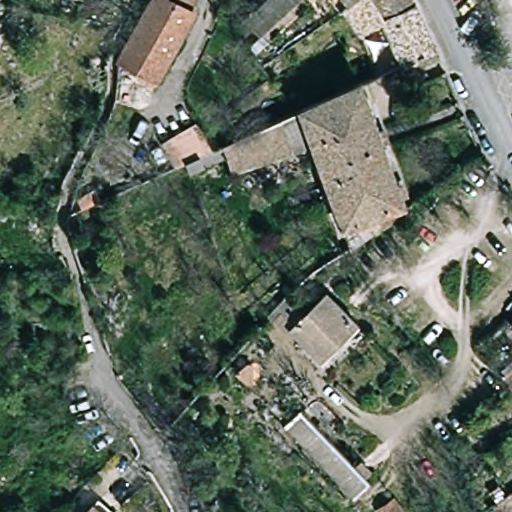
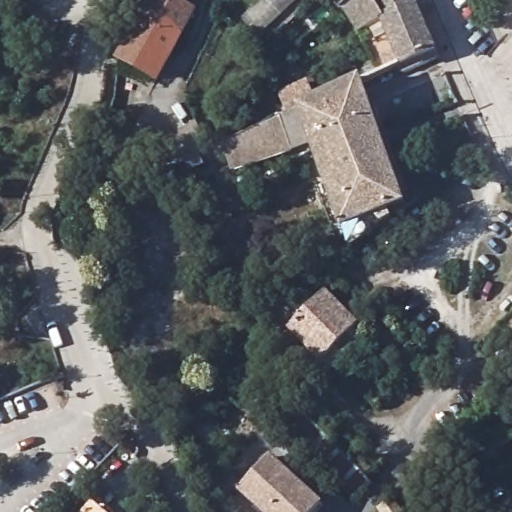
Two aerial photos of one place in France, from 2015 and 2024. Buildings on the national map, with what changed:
unchanged [(188,0),(187,7),(195,12),(158,79),(124,60),(153,0),(188,0)]
unchanged [(307,0),(267,39),(248,22),(269,0),(307,0)]
unchanged [(400,72),(398,68),(382,76),(364,34),(347,7),(353,3),(356,0),(413,0),(416,4),(437,51),(440,58),(406,74),(400,72)]
unchanged [(351,0),(356,0),(353,3),(351,0)]
unchanged [(364,80),(407,204),(353,243),(352,241),(317,145),(293,156),(280,115),(362,78),(364,80)]
unchanged [(187,157),(215,144),(222,141),(242,132),(247,130),(243,124),(248,122),(251,128),(280,115),(293,156),(225,186),(213,157),(190,166),(187,157)]
unchanged [(323,360),(288,325),(290,322),(287,317),(297,308),(305,316),(305,315),(317,305),(327,294),(345,312),(358,324),(341,342),(323,360)]
unchanged [(293,432),(297,427),(286,416),(297,405),(368,477),(353,492),(293,432)]
new [(240,493),(272,457),(322,504),(315,512),(260,512),(240,493)]
unchanged [(498,503),(500,502),(508,497),(512,494),(512,512),(502,512),(498,503)]
unchanged [(405,510),(402,512),(384,512),(382,508),(395,497),(405,510)]
unchanged [(93,502),(105,512),(85,512),(93,502)]

